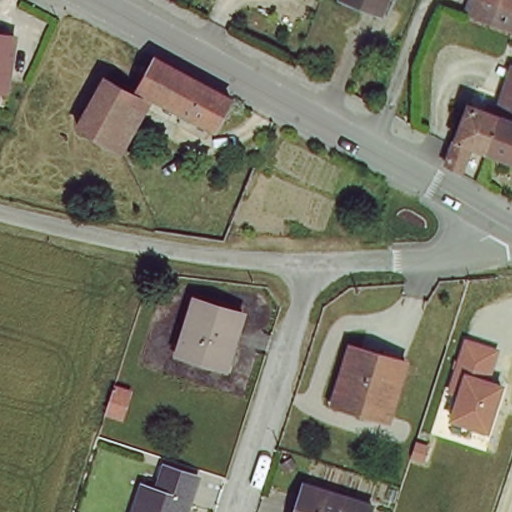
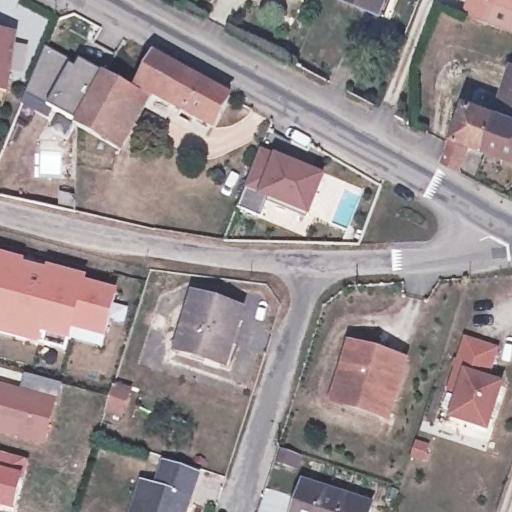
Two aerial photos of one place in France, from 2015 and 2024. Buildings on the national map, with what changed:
unchanged [(378,15),(339,0),(384,0),(378,15)]
unchanged [(512,32),(511,33),(486,23),(466,15),(472,0),(512,0),(512,32)]
unchanged [(18,32),(7,104),(0,103),(0,29),(18,32)]
unchanged [(213,131),(137,90),(153,58),(215,92),(230,100),(213,131)]
unchanged [(75,128),(103,80),(135,99),(106,147),(75,128)]
unchanged [(512,123),(506,121),(504,120),(512,98),(512,123)]
unchanged [(468,148),(459,173),(445,166),(466,106),(482,112),(485,104),(497,109),(494,116),(497,118),(485,153),(485,154),(468,148)]
unchanged [(512,123),(512,163),(485,154),(485,153),(497,118),(504,120),(506,121),(512,123)]
new [(260,153),(322,177),(307,212),(267,197),(259,216),(237,207),(260,153)]
new [(22,264),(24,259),(52,267),(49,272),(83,281),(82,285),(115,295),(104,337),(103,348),(78,340),(67,346),(65,352),(0,335),(0,258),(22,264)]
unchanged [(178,353),(195,300),(243,315),(226,367),(204,360),(205,357),(184,350),(181,354),(178,353)]
unchanged [(458,394),(446,388),(462,337),(496,350),(487,381),(502,385),(486,431),(450,419),(458,394)]
unchanged [(334,401),(351,346),(404,362),(388,417),(334,401)]
new [(57,397),(45,446),(0,434),(0,383),(57,397)]
unchanged [(108,404),(112,390),(127,395),(118,419),(105,415),(108,404)]
new [(28,460),(14,512),(12,512),(0,509),(0,453),(28,460)]
unchanged [(163,488),(170,466),(201,476),(190,512),(140,512),(149,483),(163,488)]
unchanged [(373,511),(373,512),(297,512),(305,489),(373,511)]

